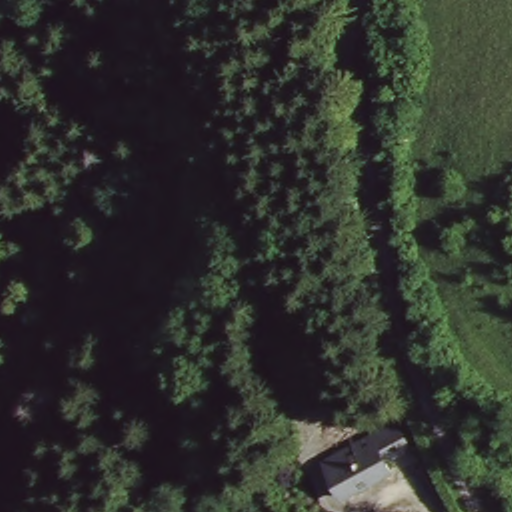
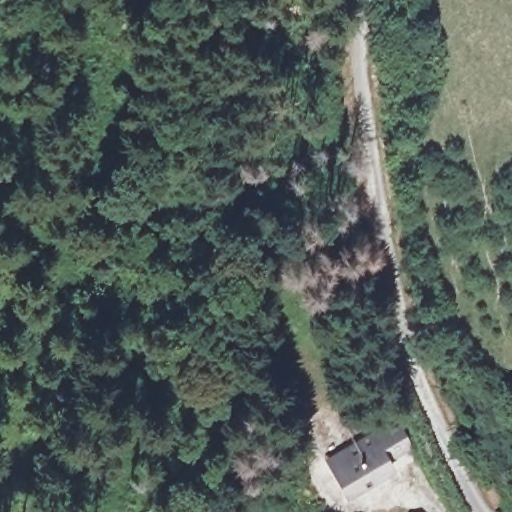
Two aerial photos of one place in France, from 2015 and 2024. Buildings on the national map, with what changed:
unchanged [(395,416),(407,446),(382,453),(383,461),(339,476),(332,450),(330,440),(329,438),(342,435),(393,411),(395,416)]

